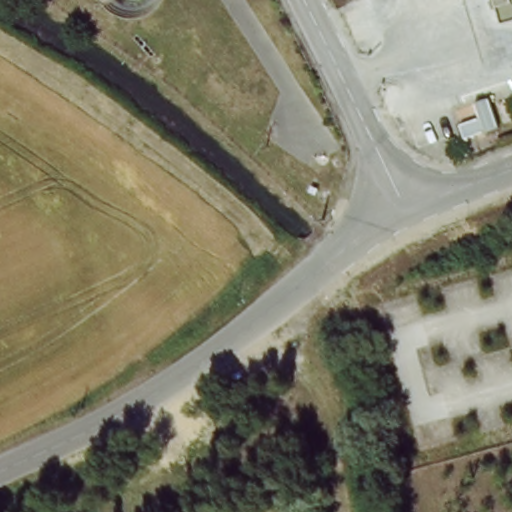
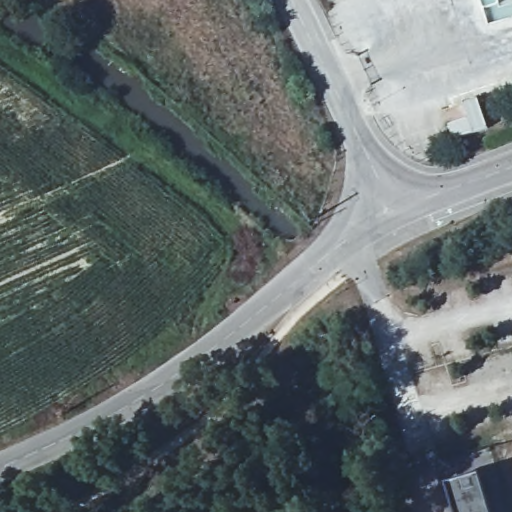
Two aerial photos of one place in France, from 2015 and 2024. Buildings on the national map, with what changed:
new [(481,478),(491,512),(455,512),(448,488),(481,478)]

